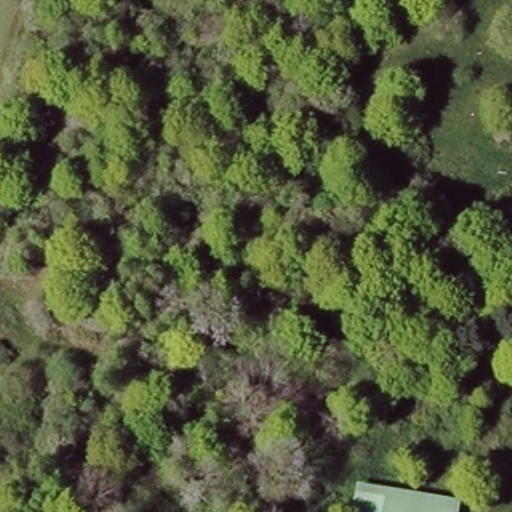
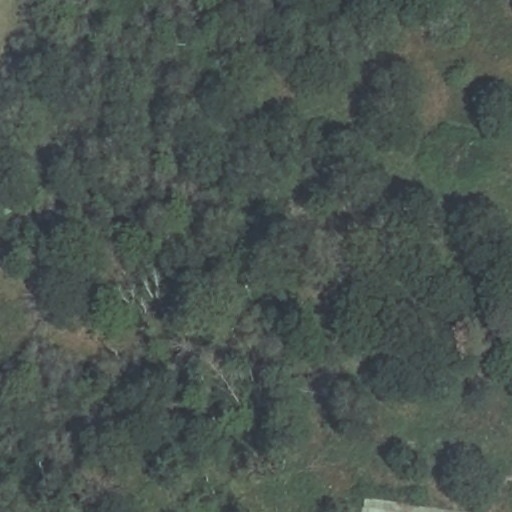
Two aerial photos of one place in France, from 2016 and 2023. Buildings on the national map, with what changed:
unchanged [(459,512),(351,512),(356,480),(461,499),(459,512)]

